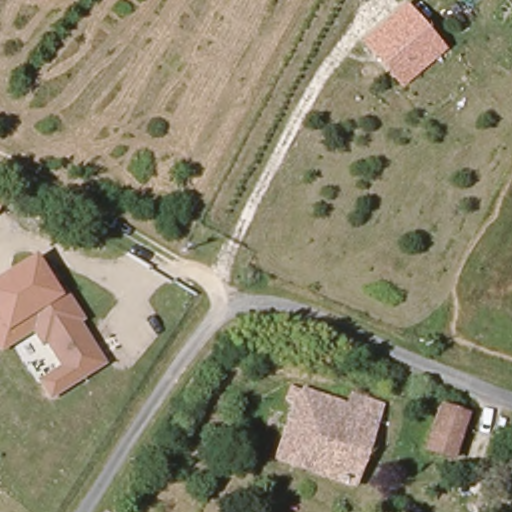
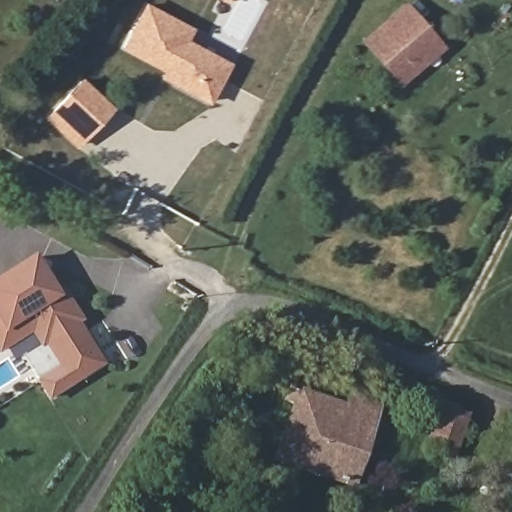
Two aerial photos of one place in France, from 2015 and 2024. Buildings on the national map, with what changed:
unchanged [(401,86),(360,38),(405,0),(406,0),(447,47),(401,86)]
new [(210,106),(159,77),(162,70),(121,48),(146,1),(195,26),(190,39),(234,63),(210,106)]
new [(116,107),(78,147),(45,116),(83,76),(116,107)]
unchanged [(58,290),(18,315),(29,334),(0,352),(0,275),(33,254),(58,290)]
unchanged [(58,290),(61,288),(82,320),(79,323),(104,365),(46,404),(33,381),(56,367),(45,345),(38,349),(29,334),(18,315),(58,290)]
unchanged [(281,468),(304,401),(350,416),(356,396),(371,400),(369,409),(382,413),(354,491),(281,468)]
unchanged [(429,453),(443,410),(467,417),(453,459),(429,453)]

